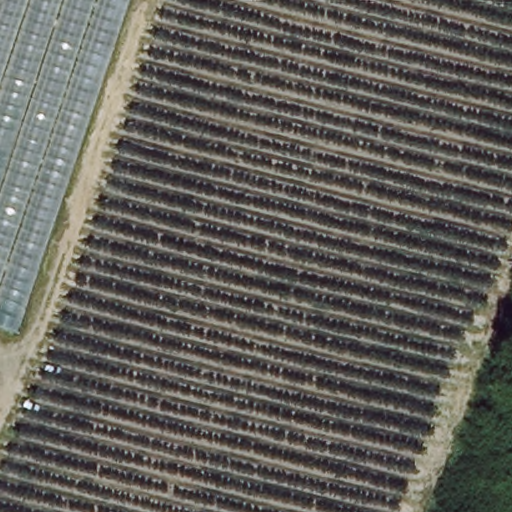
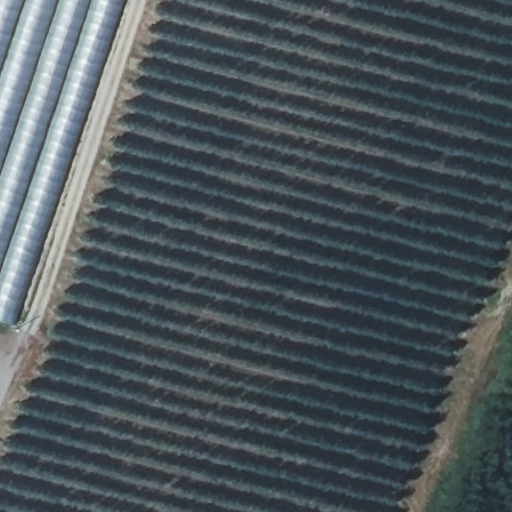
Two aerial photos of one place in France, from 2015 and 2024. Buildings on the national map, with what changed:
unchanged [(0,324),(0,0),(124,0),(10,327),(0,324)]

